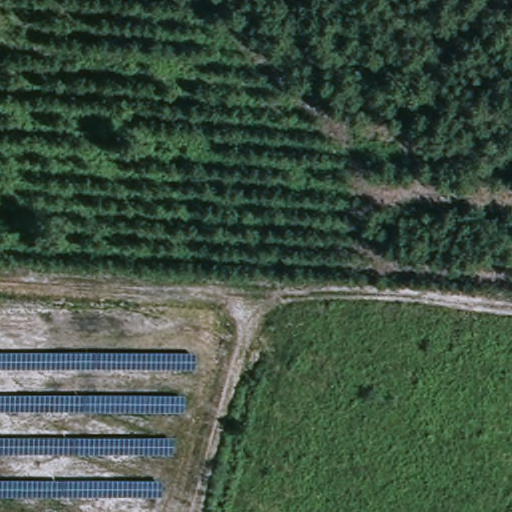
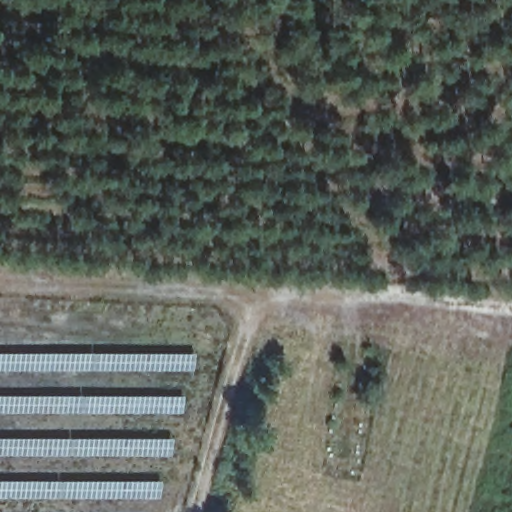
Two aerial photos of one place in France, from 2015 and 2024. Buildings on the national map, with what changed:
[]

